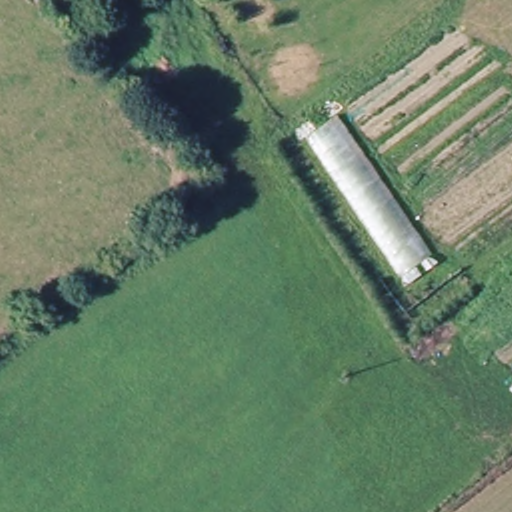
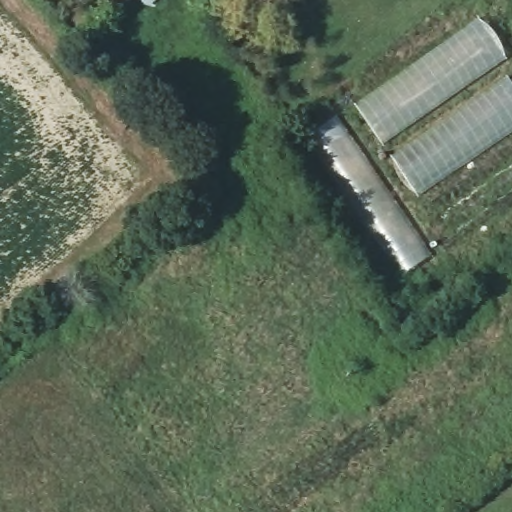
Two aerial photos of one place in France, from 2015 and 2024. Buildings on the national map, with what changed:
unchanged [(121,2),(119,0),(123,0),(121,2)]
new [(506,58),(381,143),(356,104),(479,18),(506,58)]
new [(512,82),(512,131),(417,196),(391,157),(509,76),(512,82)]
unchanged [(336,118),(431,255),(402,276),(307,136),(336,118)]

